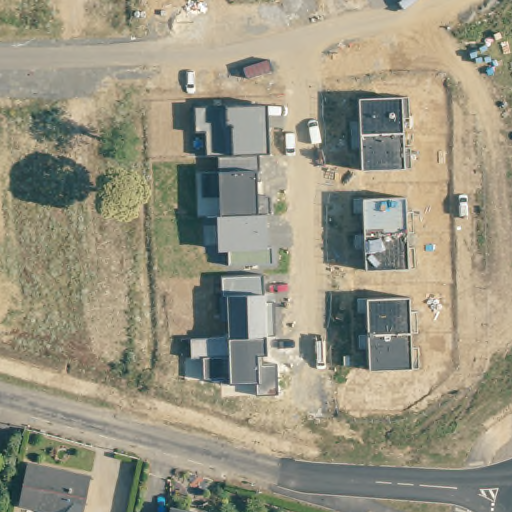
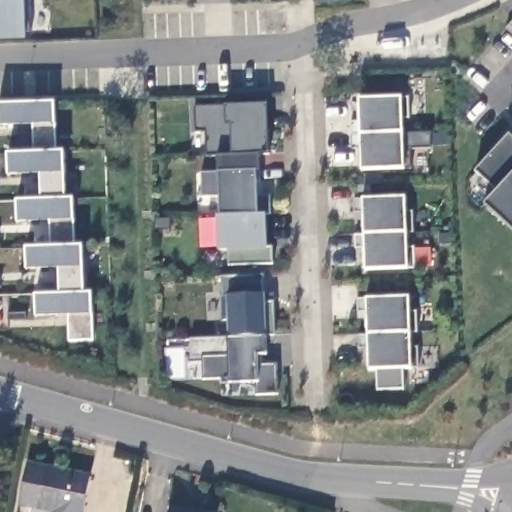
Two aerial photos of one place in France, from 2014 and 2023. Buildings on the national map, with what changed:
new [(31,32),(27,34),(0,35),(0,0),(30,0),(31,32)]
unchanged [(362,170),(360,99),(403,97),(410,97),(410,118),(404,118),(404,149),(411,149),(411,168),(405,168),(362,170)]
new [(69,314),(37,316),(35,294),(60,293),(59,267),(27,269),(26,247),(54,245),(52,220),(19,222),(18,200),(42,198),(41,173),(10,174),(9,153),(35,151),(32,123),(0,125),(0,103),(56,101),(56,124),(57,150),(65,150),(67,197),(74,197),(75,220),(76,244),(84,244),(85,292),(92,291),(94,314),(92,314),(94,340),(70,340),(69,314)]
unchanged [(230,264),(230,251),(220,251),(219,216),(221,216),(220,196),(206,196),(205,173),(220,173),(219,155),(208,155),(207,130),(197,130),(196,108),(226,107),(267,105),(270,152),(260,153),(261,180),(257,180),(258,196),(271,196),(272,213),(268,214),(269,249),(272,247),(272,263),(230,264)]
new [(486,203),(498,191),(476,170),(510,134),(512,136),(512,227),(486,203)]
unchanged [(367,269),(363,199),(406,198),(407,212),(414,212),(415,231),(408,232),(410,247),(415,247),(415,268),(367,269)]
unchanged [(266,299),(275,299),(276,335),(268,336),(268,355),(258,355),(258,362),(276,362),(278,393),(259,394),(260,382),(229,383),(229,378),(204,379),(203,358),(192,358),(192,337),(229,336),(229,320),(222,320),(220,277),(263,276),(266,299)]
unchanged [(412,332),(413,346),(420,346),(420,367),(363,370),(362,348),(360,348),(358,298),(410,297),(411,312),(418,311),(419,332),(412,332)]
unchanged [(86,512),(56,512),(58,503),(25,496),(33,458),(95,471),(86,512)]
unchanged [(187,509),(186,512),(169,512),(170,506),(187,509)]

